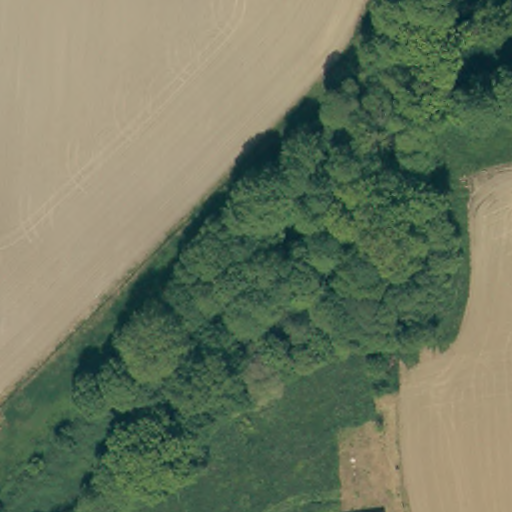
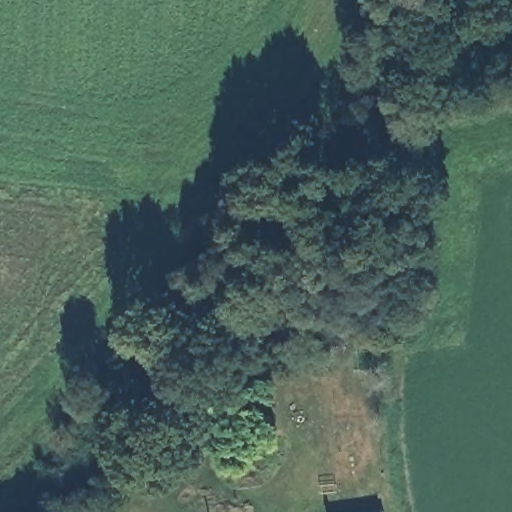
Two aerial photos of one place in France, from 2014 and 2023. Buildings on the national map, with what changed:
unchanged [(364,512),(384,509),(385,512),(364,512)]

